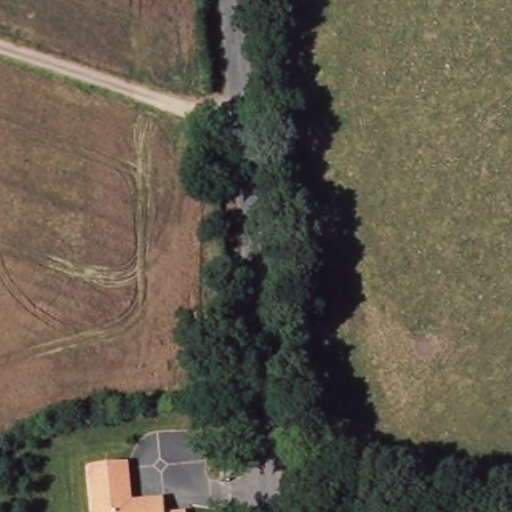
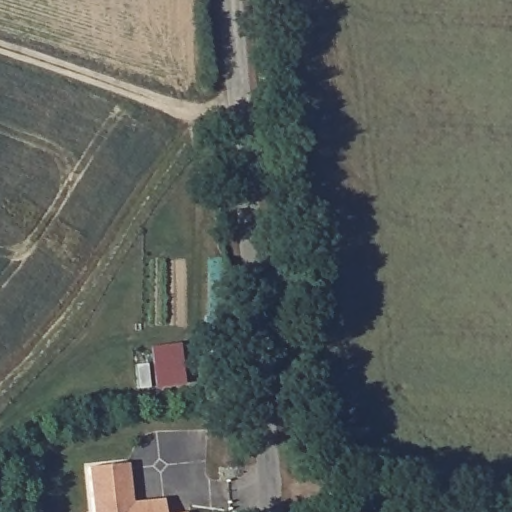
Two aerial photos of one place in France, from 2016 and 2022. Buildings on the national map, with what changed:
new [(179,342),(185,390),(155,392),(150,347),(179,342)]
unchanged [(126,459),(129,498),(144,497),(161,496),(162,511),(183,510),(184,512),(90,512),(86,463),(126,459)]

